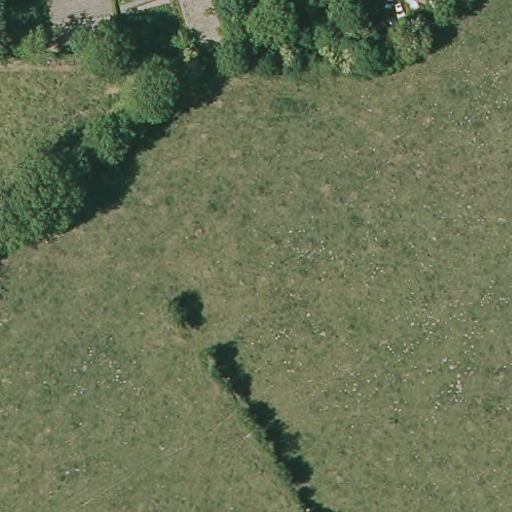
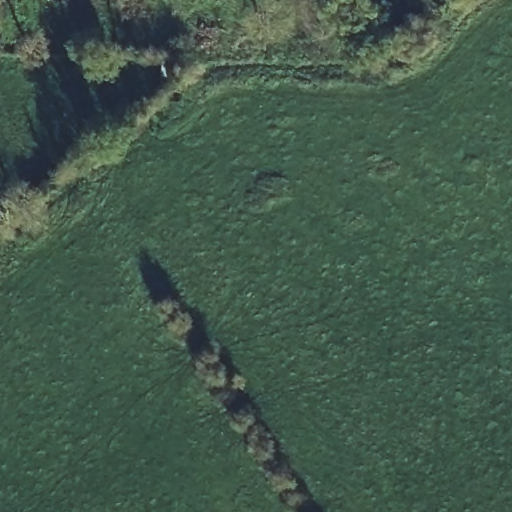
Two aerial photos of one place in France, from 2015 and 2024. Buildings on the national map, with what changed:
[]

